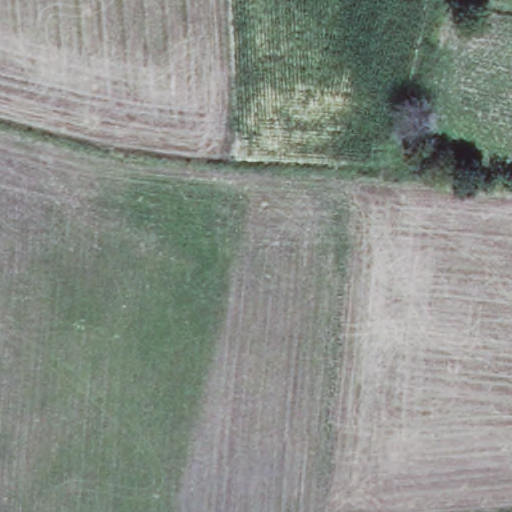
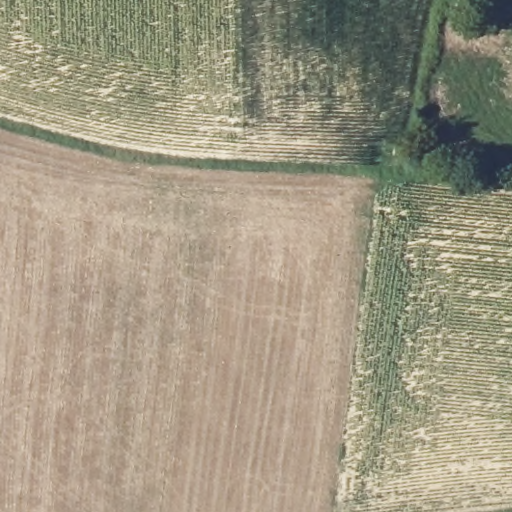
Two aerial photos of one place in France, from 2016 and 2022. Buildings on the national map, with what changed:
[]

